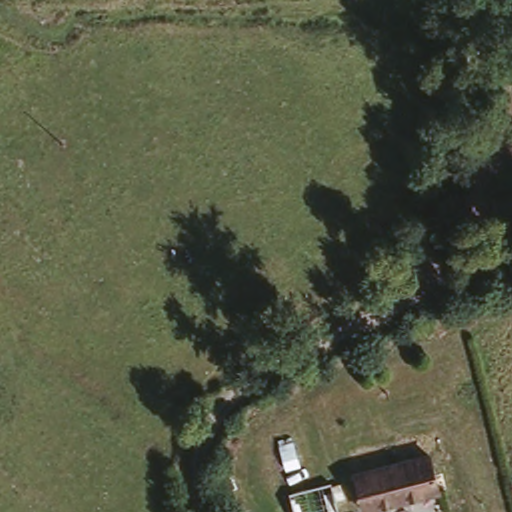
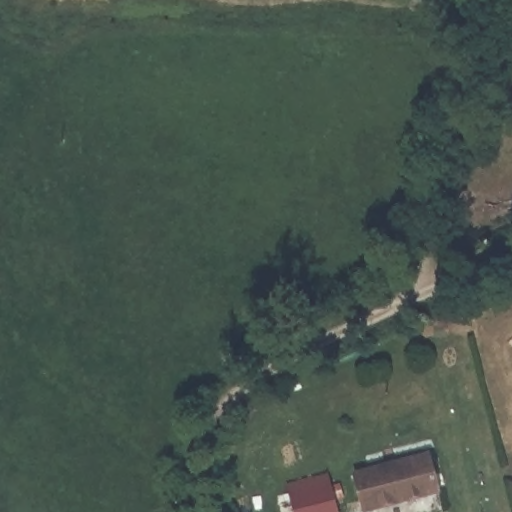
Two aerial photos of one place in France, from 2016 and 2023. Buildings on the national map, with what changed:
unchanged [(438,495),(387,512),(366,512),(357,482),(428,460),(438,495)]
new [(294,512),(290,495),(297,490),(332,481),(337,499),(340,512),(294,512)]

